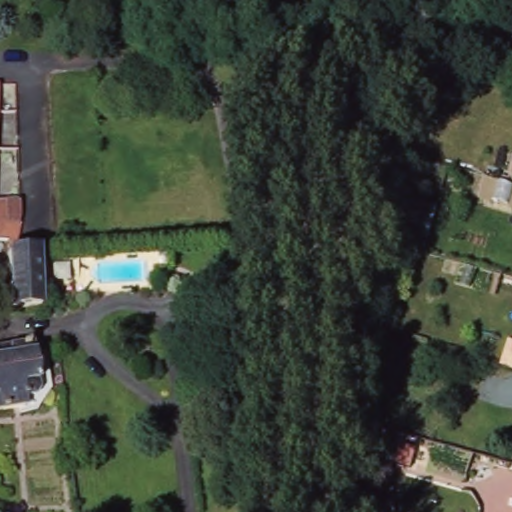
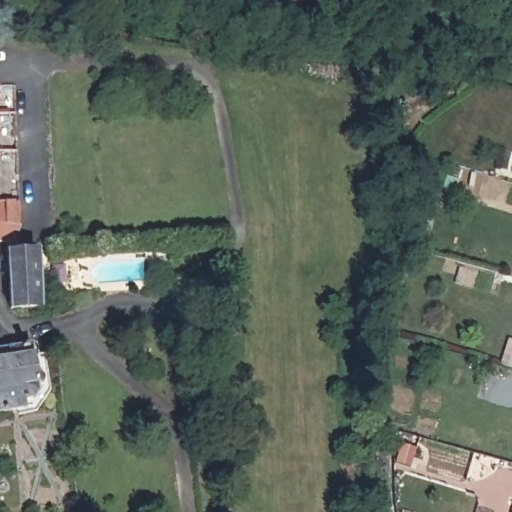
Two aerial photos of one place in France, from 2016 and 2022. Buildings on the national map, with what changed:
unchanged [(7,202),(22,201),(23,216),(18,248),(9,246),(0,246),(0,204),(6,205),(7,202)]
unchanged [(42,275),(43,307),(15,310),(12,310),(9,254),(18,253),(41,251),(41,263),(42,275)]
unchanged [(25,408),(0,413),(0,353),(15,350),(17,360),(28,357),(36,393),(25,408)]

